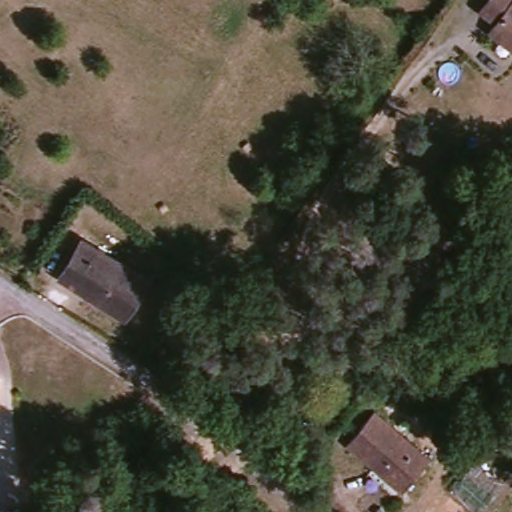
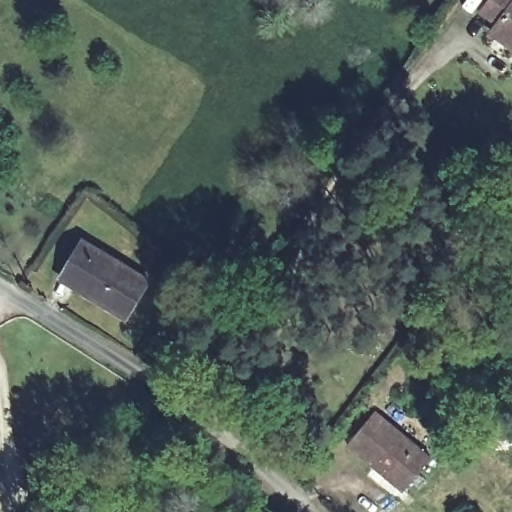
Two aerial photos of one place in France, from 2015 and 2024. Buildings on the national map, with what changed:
unchanged [(493,27),(494,21),(481,11),(490,0),(512,0),(512,55),(486,34),(493,27)]
unchanged [(79,300),(86,291),(62,272),(79,242),(148,287),(123,329),(79,300)]
unchanged [(428,454),(400,488),(347,443),(374,408),(428,454)]

